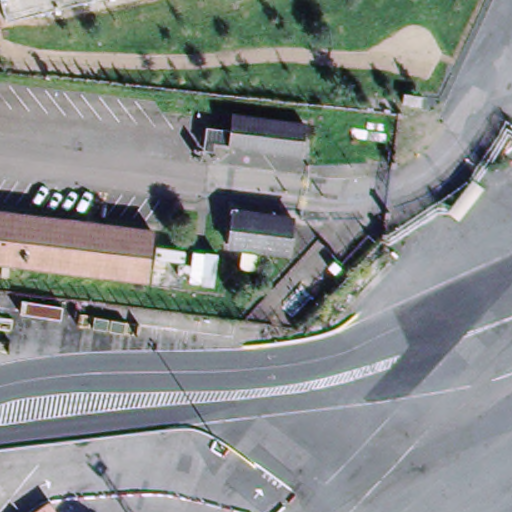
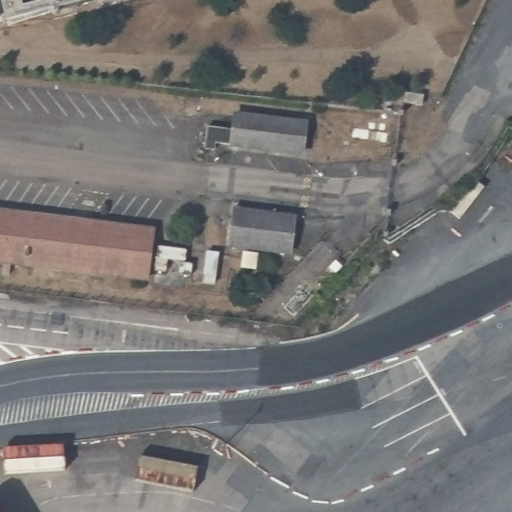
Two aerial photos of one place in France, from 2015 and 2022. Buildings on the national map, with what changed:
unchanged [(2,0),(91,0),(7,22),(2,0)]
unchanged [(216,153),(206,151),(209,129),(233,132),(235,115),(308,122),(305,156),(231,147),(217,146),(216,153)]
unchanged [(293,217),(287,257),(227,250),(231,211),(293,217)]
unchanged [(150,283),(0,265),(0,212),(156,232),(150,283)]

